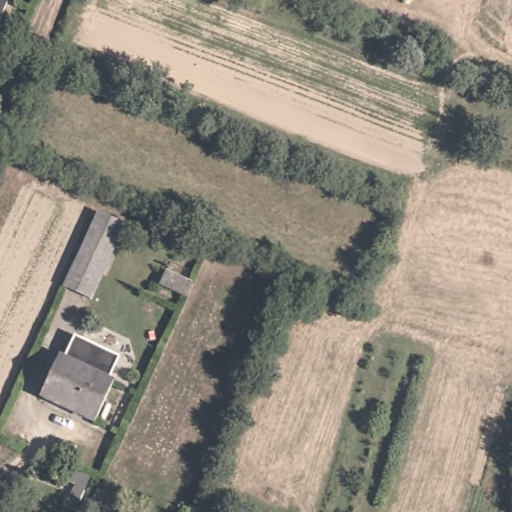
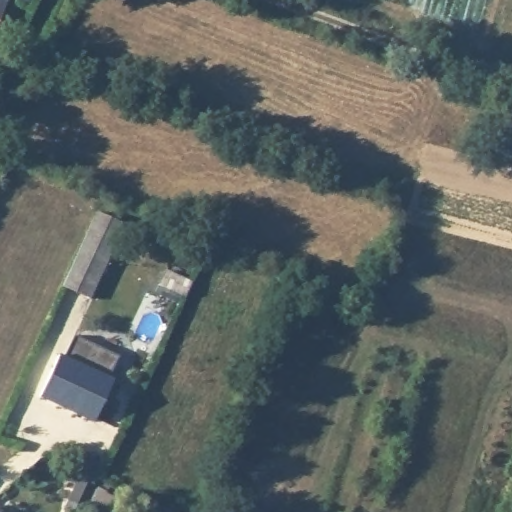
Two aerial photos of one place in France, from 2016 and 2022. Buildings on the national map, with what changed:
unchanged [(3,12),(0,19),(0,0),(7,4),(3,12)]
unchanged [(97,208),(125,221),(91,295),(64,282),(97,208)]
unchanged [(159,286),(165,272),(192,283),(185,298),(159,286)]
unchanged [(60,356),(65,357),(75,335),(121,357),(110,379),(115,381),(96,422),(41,397),(60,356)]

